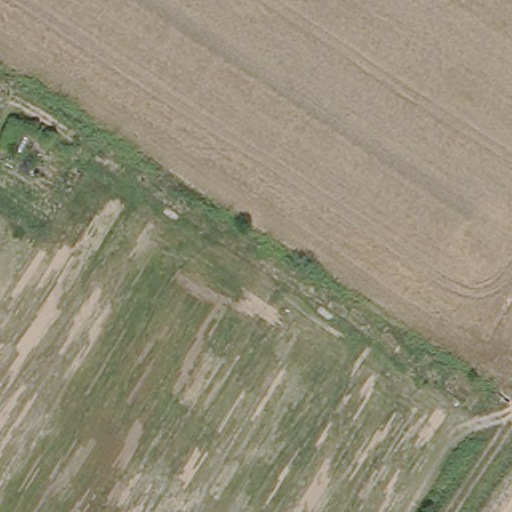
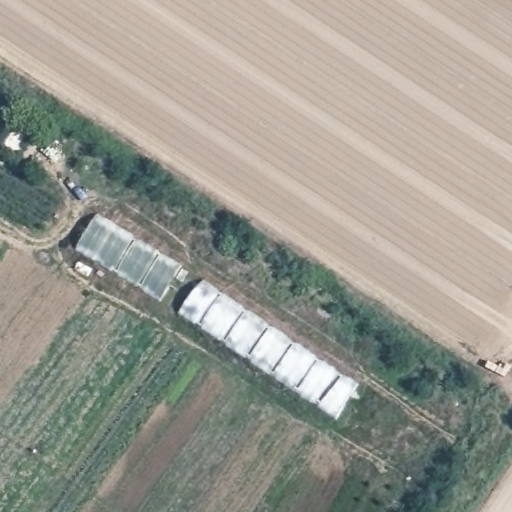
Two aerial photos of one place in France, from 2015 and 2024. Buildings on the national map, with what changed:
unchanged [(20,112),(39,124),(21,157),(2,147),(20,112)]
new [(184,266),(162,303),(77,250),(99,214),(184,266)]
new [(361,385),(337,419),(179,314),(206,278),(361,385)]

